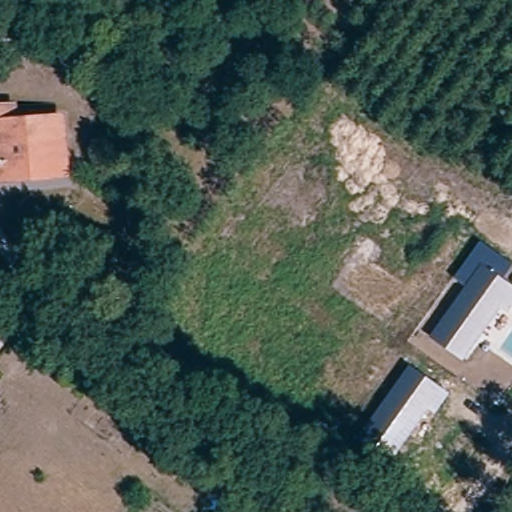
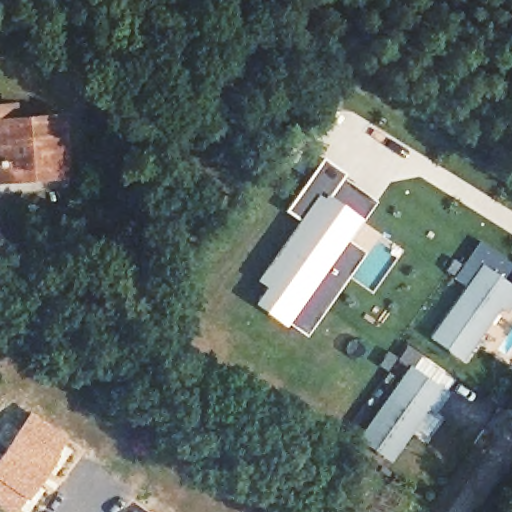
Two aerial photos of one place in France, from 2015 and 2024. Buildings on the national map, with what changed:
unchanged [(17,126),(62,121),(67,174),(5,179),(0,179),(0,112),(16,111),(17,126)]
new [(260,303),(272,288),(262,280),(273,263),(287,272),(298,257),(285,247),(303,221),(287,209),(323,158),(347,174),(332,195),(347,207),(351,201),(365,210),(358,220),(325,268),(342,279),(304,333),(260,303)]
unchanged [(512,263),(512,264),(502,278),(512,284),(512,305),(507,313),(500,309),(463,360),(430,335),(467,283),(455,275),(480,241),(512,263)]
unchanged [(450,393),(436,414),(428,410),(388,463),(356,442),(409,365),(450,393)]
new [(66,436),(45,469),(12,512),(9,512),(0,506),(0,448),(27,410),(66,436)]
unchanged [(292,512),(263,512),(272,499),(292,512)]
new [(149,509),(153,512),(146,512),(149,509)]

